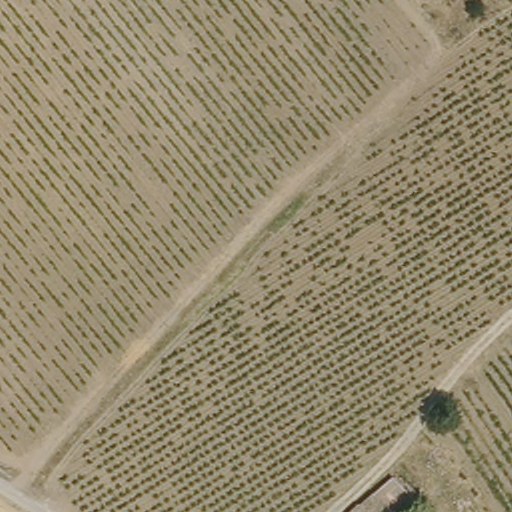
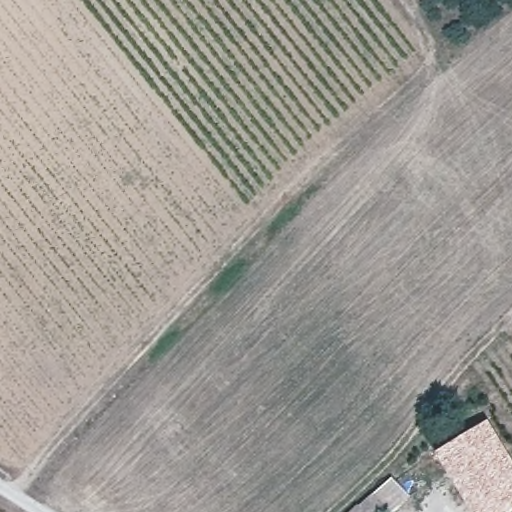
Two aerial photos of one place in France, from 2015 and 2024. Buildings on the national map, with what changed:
new [(512,458),(512,510),(509,512),(472,512),(435,451),(487,418),(512,458)]
unchanged [(390,479),(411,501),(399,512),(354,512),(390,479)]

